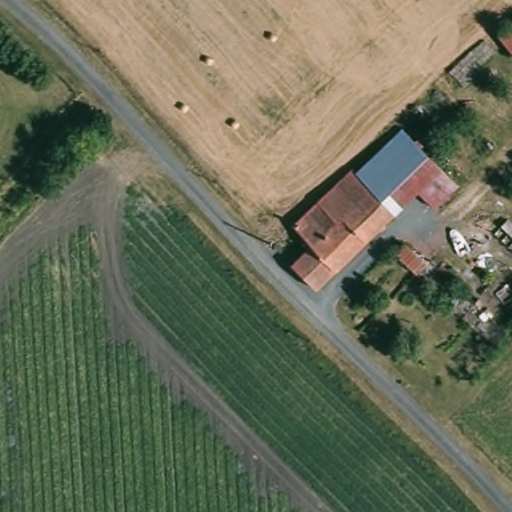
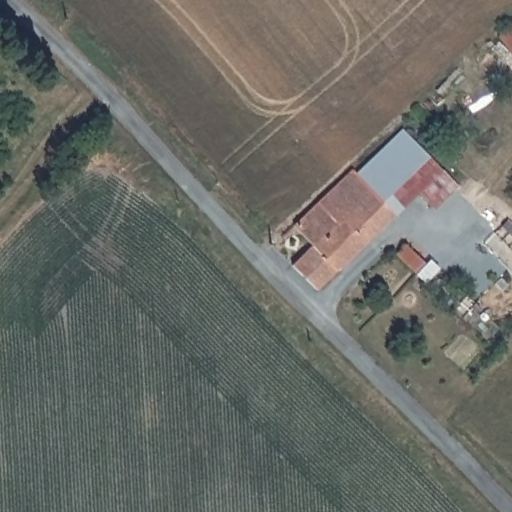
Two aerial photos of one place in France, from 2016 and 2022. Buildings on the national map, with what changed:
unchanged [(396,216),(356,177),(401,134),(441,172),(396,216)]
unchanged [(293,228),(352,173),(356,177),(396,216),(319,292),(315,290),(292,268),(312,249),(293,228)]

